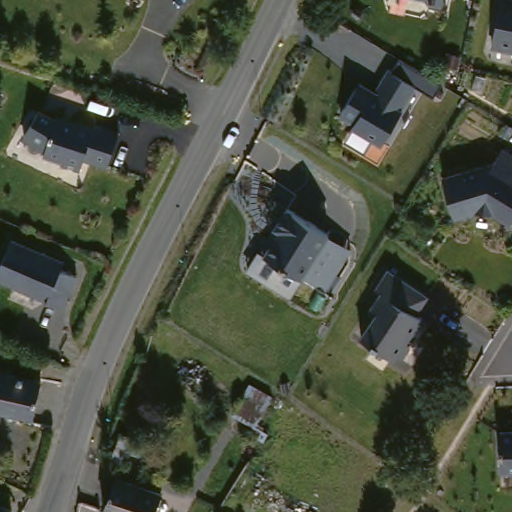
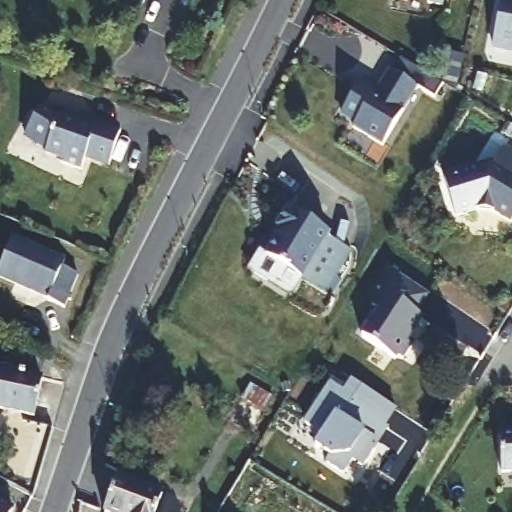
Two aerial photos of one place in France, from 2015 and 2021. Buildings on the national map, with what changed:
unchanged [(494,44),(504,0),(512,0),(512,48),(494,44)]
unchanged [(364,81),(376,88),(381,87),(397,62),(424,79),(390,138),(361,120),(364,115),(349,105),(364,81)]
unchanged [(40,103),(42,104),(56,113),(59,109),(94,122),(96,118),(129,129),(118,163),(94,154),(89,166),(71,160),(72,158),(54,150),(55,146),(28,132),(40,103)]
unchanged [(512,149),(512,216),(497,208),(478,207),(457,212),(445,174),(493,159),(494,160),(504,144),(512,149)]
unchanged [(263,245),(279,221),(273,217),(284,199),(285,198),(327,223),(326,224),(298,267),(263,245)]
unchanged [(348,239),(321,282),(298,267),(326,224),(348,239)]
unchanged [(64,264),(80,270),(66,303),(49,296),(50,294),(0,273),(0,268),(14,234),(66,257),(64,264)]
unchanged [(432,287),(421,304),(427,308),(411,333),(415,338),(407,351),(401,349),(399,352),(366,329),(382,304),(375,300),(385,284),(380,282),(393,261),(432,287)]
unchanged [(37,412),(0,402),(0,364),(45,376),(37,412)]
new [(329,382),(343,391),(351,378),(397,409),(386,424),(389,427),(375,449),(377,449),(364,469),(354,461),(344,474),(326,462),(327,454),(314,444),(323,433),(302,422),(329,382)]
unchanged [(512,428),(512,468),(502,468),(501,429),(512,428)]
unchanged [(129,471),(167,486),(157,512),(129,512),(116,508),(129,471)]
unchanged [(14,512),(0,512),(0,498),(16,506),(14,512)]

